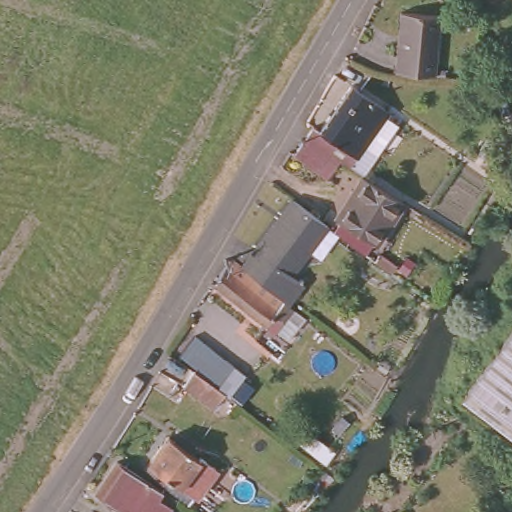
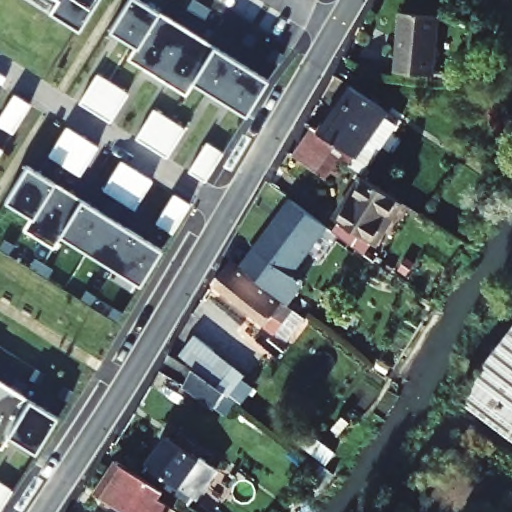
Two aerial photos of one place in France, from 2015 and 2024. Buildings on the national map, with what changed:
new [(49,9),(34,0),(55,0),(49,9)]
new [(78,28),(49,9),(55,0),(96,0),(78,28)]
new [(127,0),(141,0),(160,12),(138,48),(135,46),(109,30),(127,0)]
unchanged [(442,10),(433,70),(393,64),(401,5),(442,10)]
new [(135,46),(138,48),(160,12),(186,29),(157,77),(127,59),(135,46)]
new [(186,29),(213,45),(191,81),(193,83),(186,95),(157,77),(186,29)]
new [(213,45),(242,63),(220,99),(193,83),(191,81),(213,45)]
new [(242,63),(268,79),(246,115),(220,99),(242,63)]
new [(110,122),(95,113),(80,103),(97,74),(112,84),(128,94),(110,122)]
unchanged [(320,181),(310,175),(310,174),(288,159),(309,130),(315,135),(347,90),(384,117),(380,122),(392,130),(372,159),(356,181),(347,174),(333,193),(320,181)]
new [(15,95),(30,105),(12,134),(0,126),(0,118),(15,95)]
new [(167,157),(152,148),(136,138),(154,110),(169,119),(185,129),(167,157)]
new [(80,176),(65,166),(49,157),(67,128),(82,137),(98,147),(80,176)]
new [(207,143),(223,153),(205,181),(189,171),(207,143)]
new [(2,151),(0,154),(0,149),(2,151)]
new [(134,210),(119,200),(103,190),(122,161),(137,171),(152,181),(134,210)]
new [(27,166),(53,183),(30,218),(5,202),(27,166)]
unchanged [(373,192),(399,209),(386,227),(383,226),(367,247),(335,224),(350,203),(345,200),(358,182),(373,192)]
new [(30,218),(53,183),(83,201),(61,237),(53,249),(23,230),(30,218)]
new [(175,194),(190,204),(172,233),(157,223),(175,194)]
new [(83,201),(108,217),(86,253),(61,237),(83,201)]
unchanged [(322,230),(252,332),(200,297),(222,261),(242,271),(281,201),(322,230)]
new [(108,217),(135,234),(112,269),(86,253),(108,217)]
new [(135,234),(162,250),(140,286),(112,269),(135,234)]
unchanged [(512,333),(512,436),(462,397),(512,333)]
unchanged [(229,373),(231,368),(247,377),(230,419),(182,393),(194,374),(178,365),(187,346),(229,373)]
new [(2,383),(0,386),(0,381),(2,383)]
new [(2,383),(30,400),(7,436),(10,437),(2,449),(0,448),(0,386),(2,383)]
new [(30,400),(58,417),(35,453),(10,437),(7,436),(30,400)]
unchanged [(162,446),(167,439),(184,452),(178,459),(187,466),(188,464),(204,475),(182,504),(138,469),(157,443),(162,446)]
unchanged [(157,503),(170,512),(115,512),(95,500),(117,468),(161,495),(157,503)]
new [(12,491),(0,510),(0,483),(12,491)]

